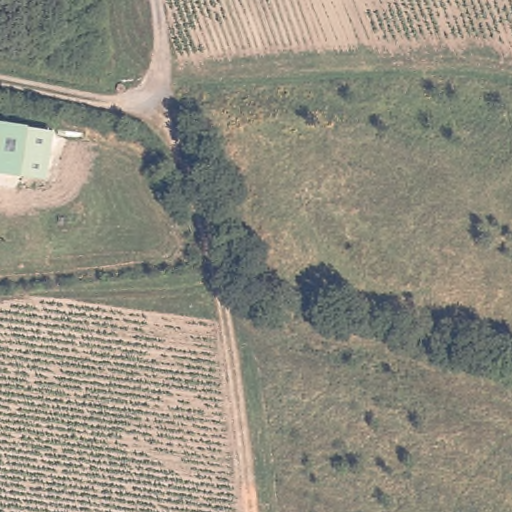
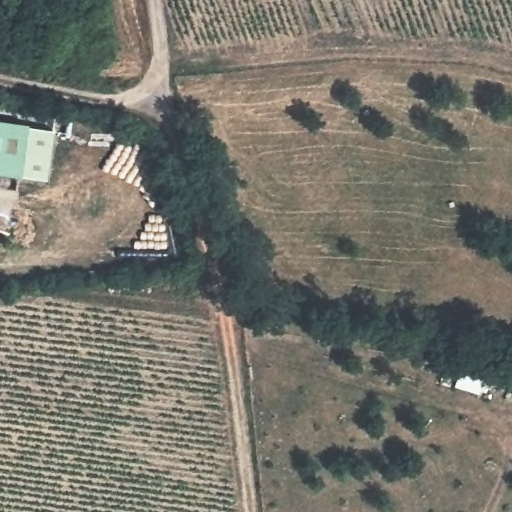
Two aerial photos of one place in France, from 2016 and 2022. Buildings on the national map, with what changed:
unchanged [(26,125),(54,130),(46,177),(19,172),(0,170),(0,122),(26,125)]

